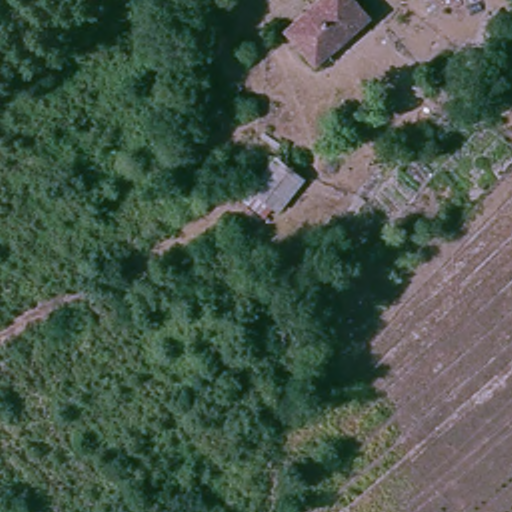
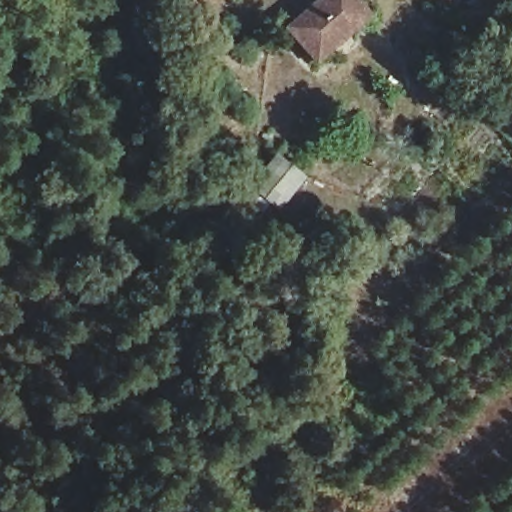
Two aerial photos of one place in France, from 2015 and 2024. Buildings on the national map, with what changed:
unchanged [(316,66),(285,30),(322,0),(349,0),(368,21),(316,66)]
unchanged [(228,104),(212,90),(222,75),(239,90),(228,104)]
unchanged [(252,190),(273,164),(296,186),(277,210),(252,190)]

